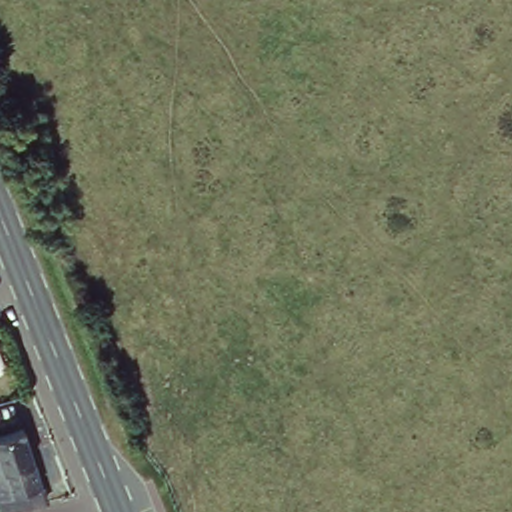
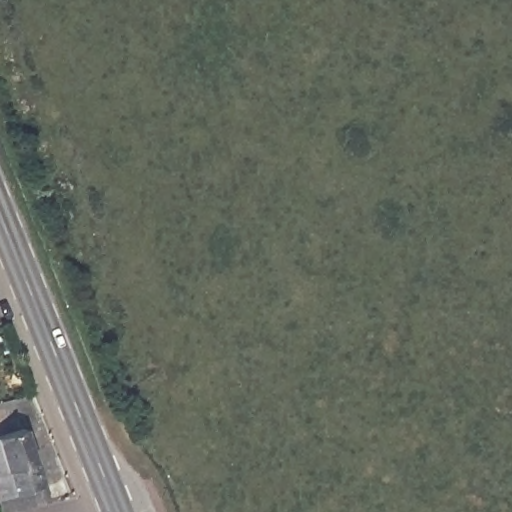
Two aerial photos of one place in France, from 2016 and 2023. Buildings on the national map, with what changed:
unchanged [(0,504),(0,430),(24,423),(45,496),(32,503),(17,507),(2,512),(0,504)]

